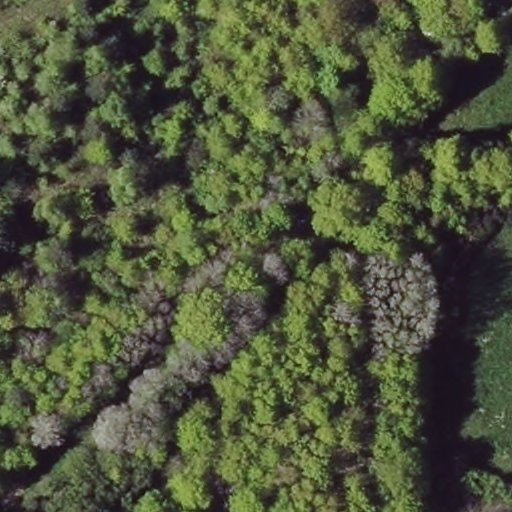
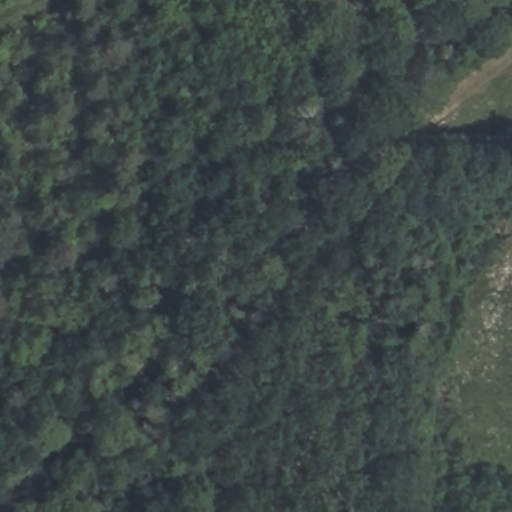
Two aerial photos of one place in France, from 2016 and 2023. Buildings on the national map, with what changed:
unchanged [(71,468),(82,483),(49,512),(21,512),(71,468)]

